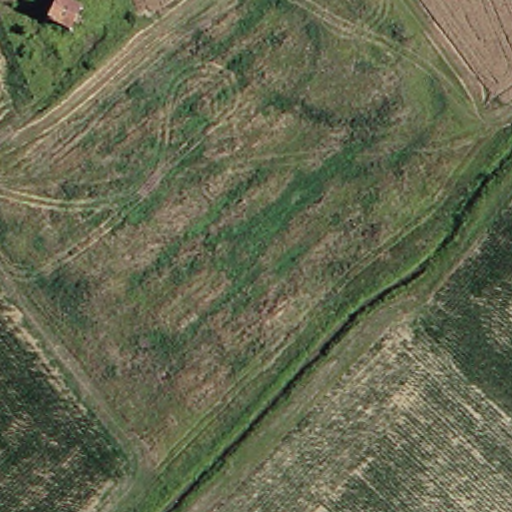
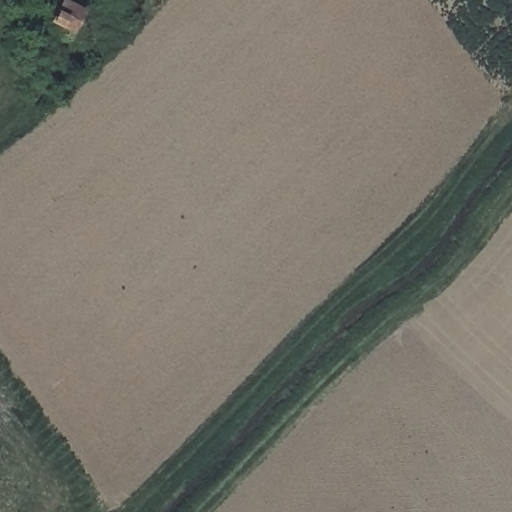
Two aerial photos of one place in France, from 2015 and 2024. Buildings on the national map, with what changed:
unchanged [(74,36),(44,29),(50,4),(82,12),(74,36)]

